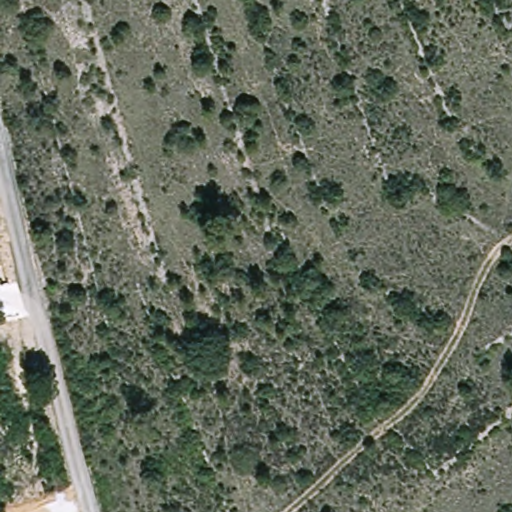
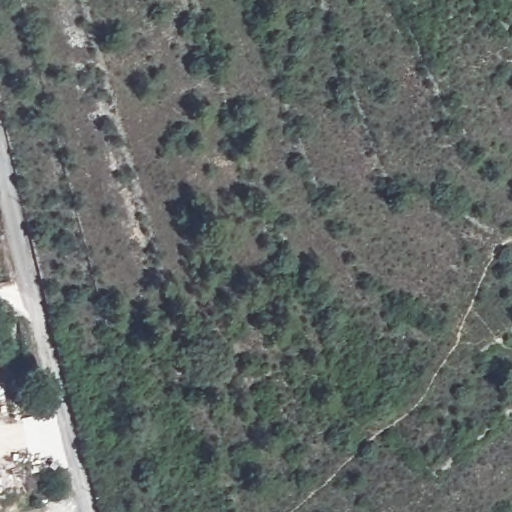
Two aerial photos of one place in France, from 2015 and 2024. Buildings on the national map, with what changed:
[]

